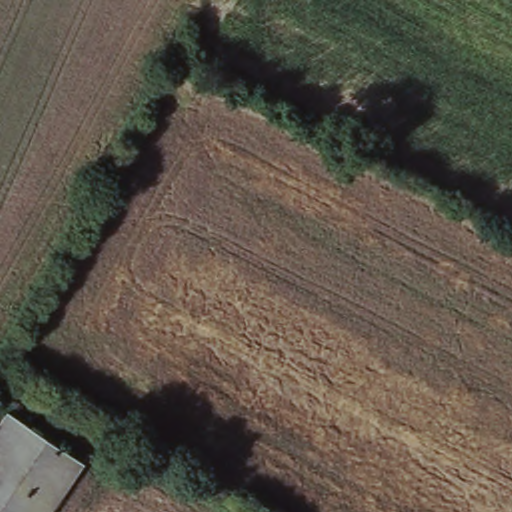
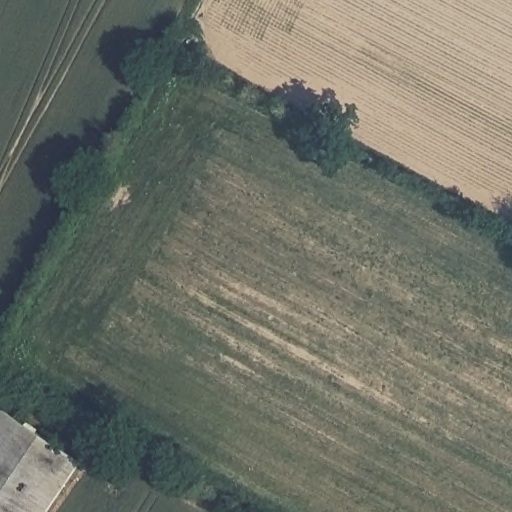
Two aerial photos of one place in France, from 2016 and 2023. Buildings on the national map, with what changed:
unchanged [(48,512),(0,512),(0,422),(7,411),(82,462),(48,512)]

